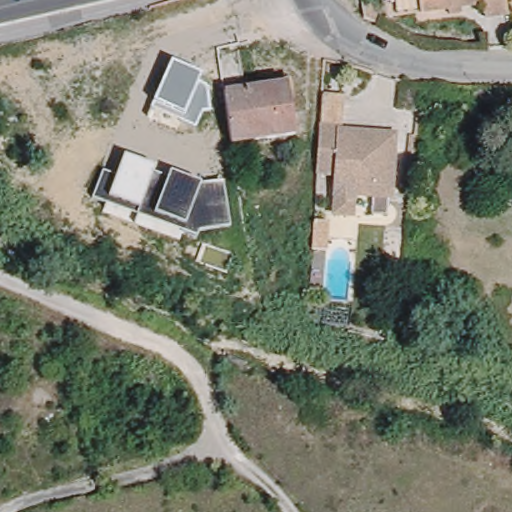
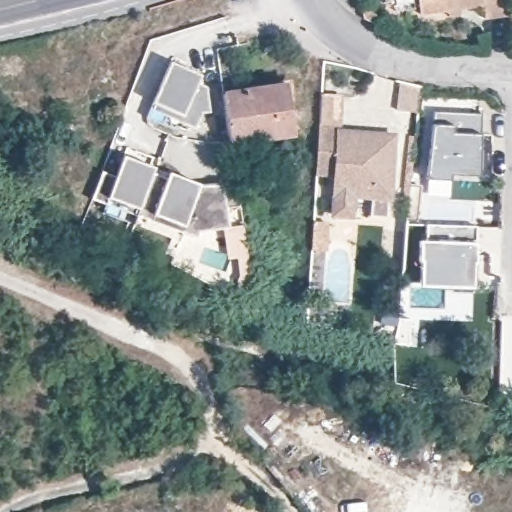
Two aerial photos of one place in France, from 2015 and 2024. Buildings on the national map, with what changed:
unchanged [(420,11),(396,14),(394,0),(419,0),(420,11)]
unchanged [(449,14),(448,7),(420,11),(419,0),(507,0),(508,14),(486,16),(484,3),(461,6),(462,13),(449,14)]
unchanged [(153,101),(171,62),(200,74),(196,82),(207,86),(210,112),(202,113),(194,129),(150,108),(153,101)]
unchanged [(291,78),(299,127),(235,137),(227,87),(291,78)]
unchanged [(333,217),(334,195),(336,176),(316,175),(317,163),(317,162),(317,161),(317,160),(317,159),(317,158),(317,157),(317,156),(317,155),(317,154),(317,153),(318,151),(318,150),(318,148),(318,147),(318,146),(318,145),(318,144),(318,143),(318,142),(318,141),(319,140),(319,139),(319,138),(319,137),(319,136),(320,124),(319,97),(338,100),(341,126),(340,131),(395,135),(390,200),(353,197),(351,218),(333,217)]
new [(431,118),(479,123),(478,186),(450,183),(450,188),(424,186),(431,118)]
unchanged [(102,171),(115,176),(123,156),(154,167),(151,174),(167,179),(169,173),(199,185),(222,183),(228,227),(199,232),(196,237),(92,199),(102,171)]
unchanged [(257,171),(259,185),(237,188),(234,175),(257,171)]
unchanged [(421,219),(420,231),(409,230),(410,218),(421,219)]
new [(475,224),(474,241),(472,286),(418,286),(419,239),(426,240),(427,223),(475,224)]

